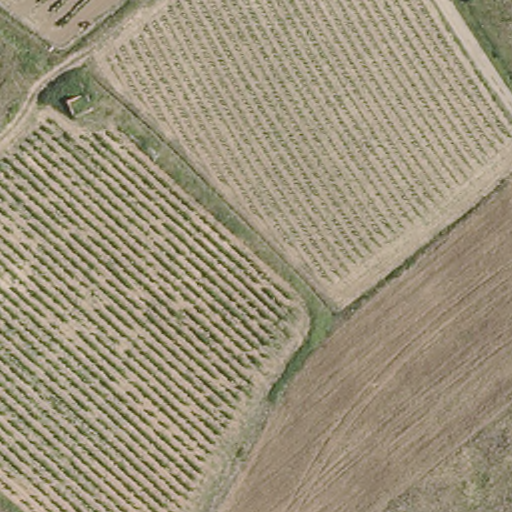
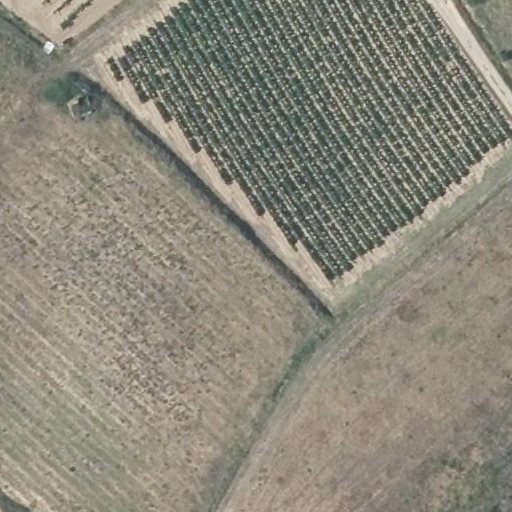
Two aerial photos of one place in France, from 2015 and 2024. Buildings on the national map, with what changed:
unchanged [(88,94),(91,109),(73,117),(69,101),(88,94)]

